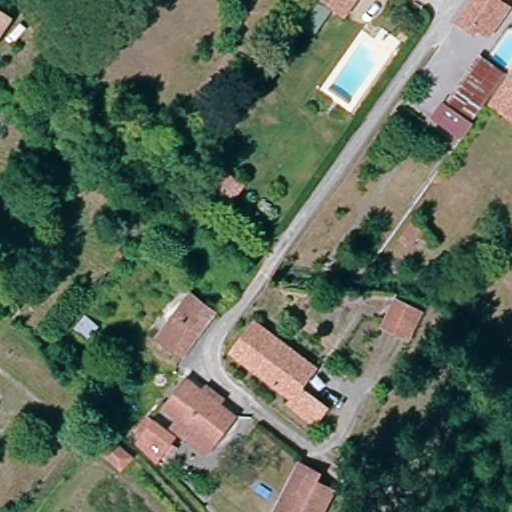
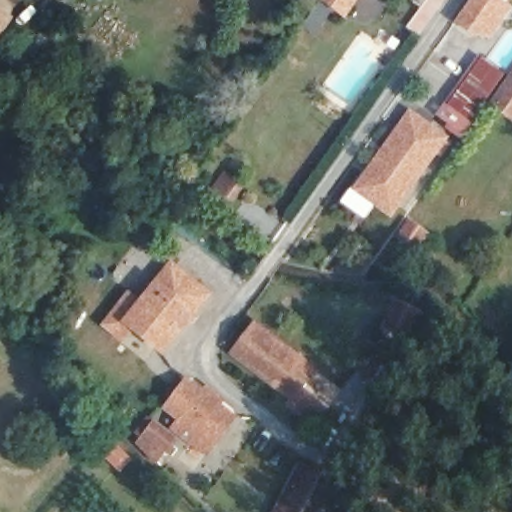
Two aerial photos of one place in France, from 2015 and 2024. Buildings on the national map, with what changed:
unchanged [(336,15),(316,0),(346,0),(336,15)]
unchanged [(486,1),(493,6),(501,12),(481,38),(467,27),(464,32),(451,22),(454,16),(466,0),(486,0),(486,1)]
unchanged [(0,32),(0,18),(6,23),(0,32)]
unchanged [(432,126),(468,75),(478,62),(497,76),(499,78),(490,91),(454,142),(432,126)]
unchanged [(512,73),(512,115),(509,119),(488,106),(512,73)]
new [(398,132),(406,138),(434,157),(391,217),(355,192),(387,148),(398,132)]
unchanged [(203,182),(219,161),(245,180),(229,199),(203,182)]
new [(140,299),(155,279),(170,259),(212,293),(195,312),(199,314),(163,356),(133,333),(123,345),(99,327),(128,290),(140,299)]
demolished [(497,262),(512,271),(512,287),(511,289),(499,281),(494,287),(484,280),(497,262)]
demolished [(188,297),(211,316),(180,359),(156,341),(188,297)]
unchanged [(389,305),(411,312),(402,336),(379,328),(389,305)]
unchanged [(253,326),(314,371),(299,390),(324,410),(311,427),(285,407),(290,399),(230,354),(253,326)]
unchanged [(203,453),(171,429),(178,419),(163,408),(183,381),(244,431),(225,456),(219,465),(203,453)]
unchanged [(144,418),(173,438),(169,444),(172,446),(168,453),(163,450),(153,462),(144,457),(126,438),(144,418)]
unchanged [(108,440),(126,456),(116,465),(99,450),(108,440)]
unchanged [(309,477),(313,483),(324,489),(312,512),(272,512),(298,471),(309,477)]

